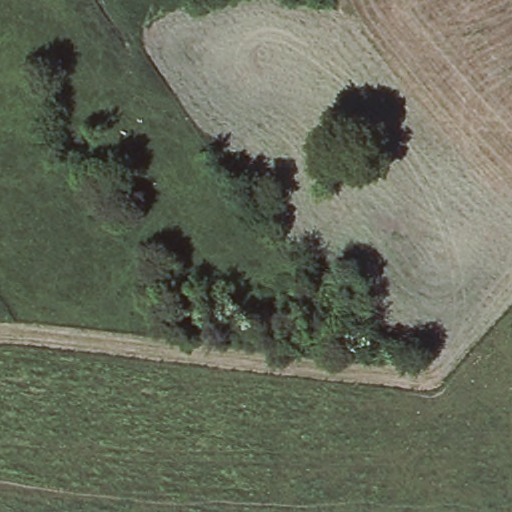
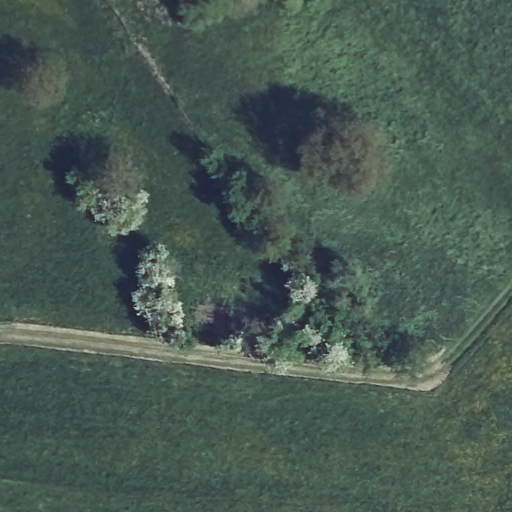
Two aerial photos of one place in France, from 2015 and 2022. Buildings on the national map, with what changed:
[]

